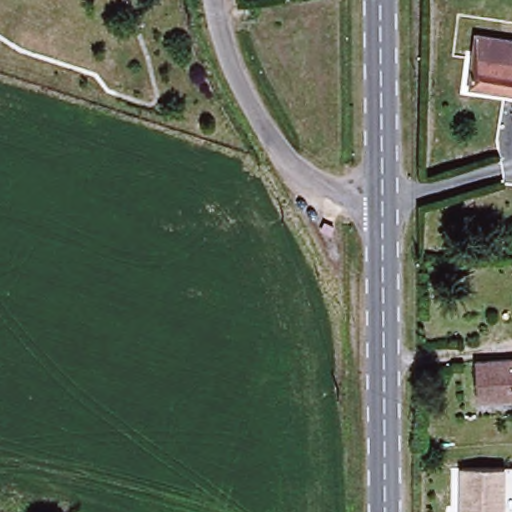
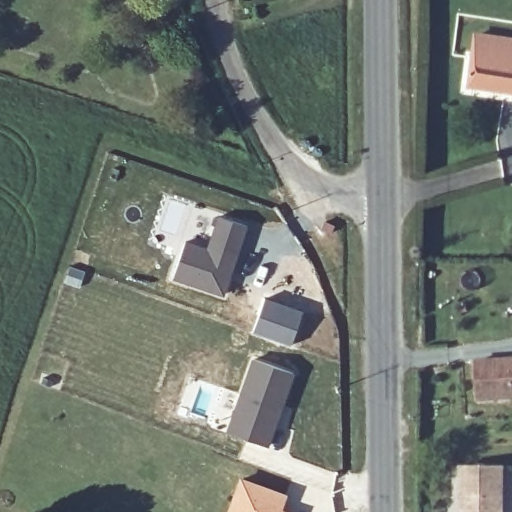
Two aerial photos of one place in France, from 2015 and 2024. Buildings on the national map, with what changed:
unchanged [(504,91),(464,86),(467,36),(512,39),(512,102),(504,101),(504,91)]
new [(185,241),(205,247),(216,215),(247,226),(223,297),(171,279),(185,241)]
new [(263,297),(302,311),(290,346),(251,333),(263,297)]
new [(249,357),(294,373),(267,447),(223,433),(249,357)]
unchanged [(512,398),(465,399),(464,362),(512,361),(512,398)]
unchanged [(458,471),(500,472),(499,512),(457,512),(458,471)]
new [(238,475),(287,493),(281,508),(292,512),(224,512),(238,475)]

